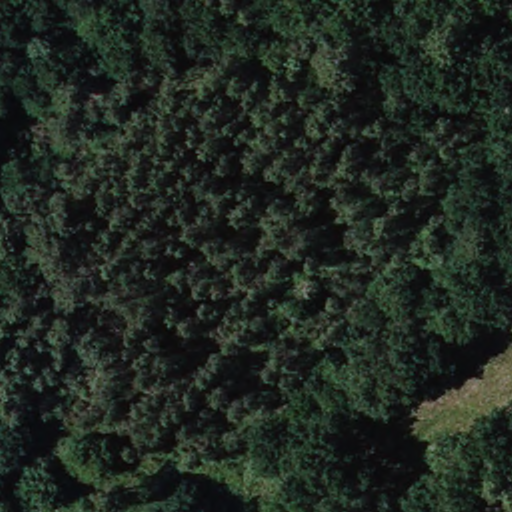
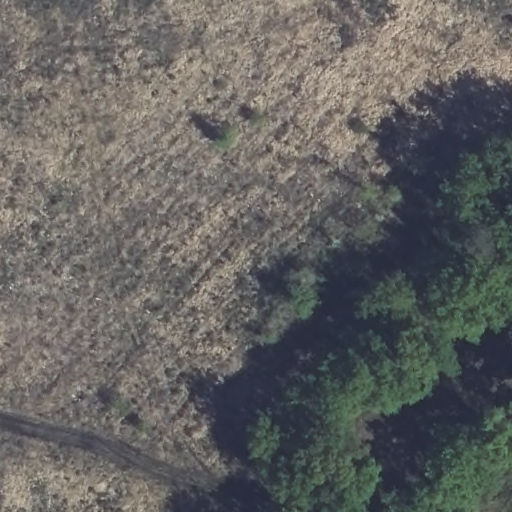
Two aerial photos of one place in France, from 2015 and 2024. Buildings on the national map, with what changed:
[]

